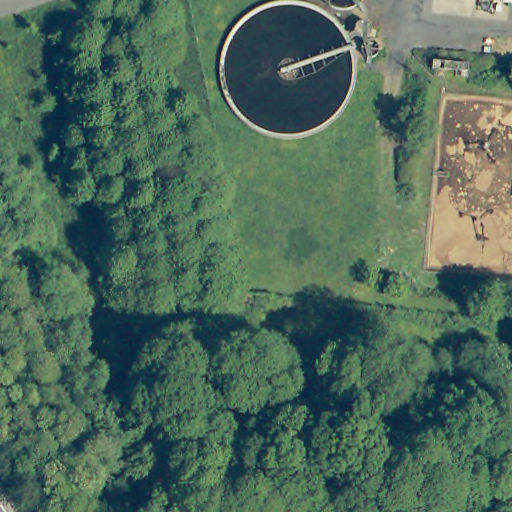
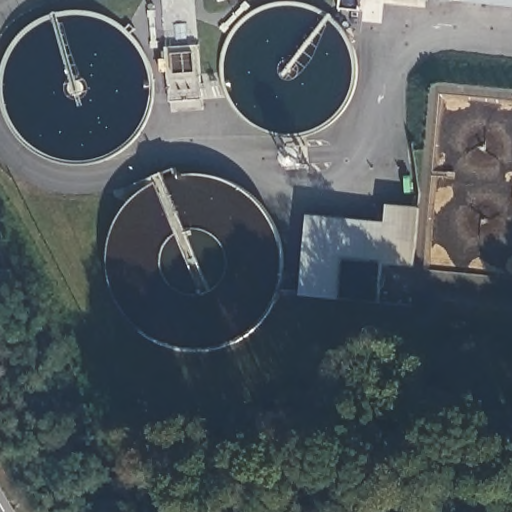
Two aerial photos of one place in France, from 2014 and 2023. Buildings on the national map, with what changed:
new [(460,0),(512,0),(512,5),(460,0)]
demolished [(502,0),(512,0),(512,1),(502,0)]
new [(412,266),(381,264),(377,302),(298,294),(307,214),(383,221),(386,203),(418,207),(412,266)]

